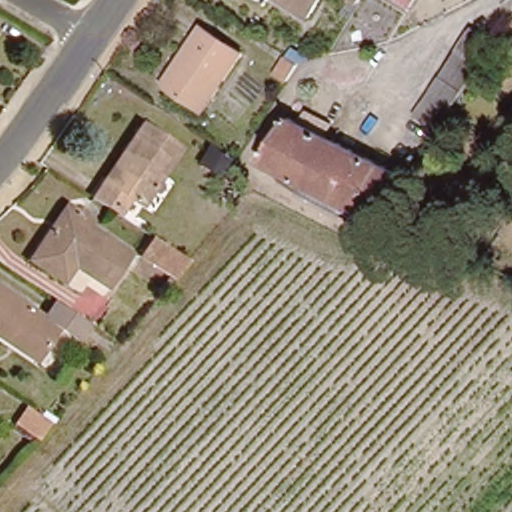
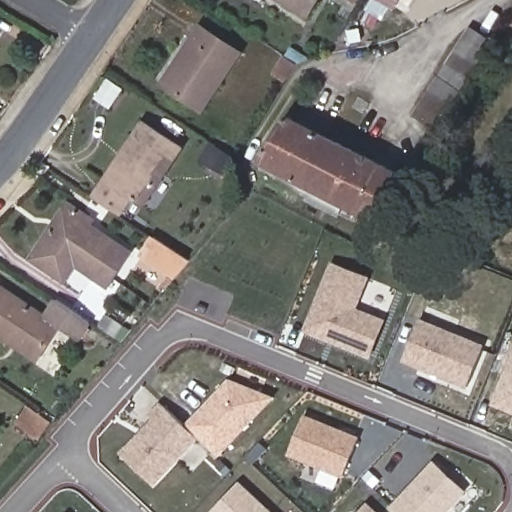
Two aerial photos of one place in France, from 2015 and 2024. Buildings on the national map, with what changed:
unchanged [(274,0),(313,0),(301,18),(274,0)]
unchanged [(512,12),(512,42),(499,33),(512,12)]
unchanged [(471,26),(492,39),(431,131),(409,116),(471,26)]
unchanged [(198,111),(161,84),(201,27),(237,54),(198,111)]
unchanged [(0,37),(0,35),(1,36),(0,37)]
unchanged [(262,55),(274,62),(263,80),(251,71),(262,55)]
unchanged [(139,199),(127,193),(116,212),(90,196),(101,179),(106,182),(121,152),(118,150),(138,118),(175,140),(139,199)]
unchanged [(270,162),(299,121),(411,182),(384,222),(270,162)]
unchanged [(50,272),(32,262),(51,227),(66,201),(72,205),(92,217),(89,222),(131,247),(110,283),(75,263),(66,281),(50,272)]
unchanged [(153,234),(190,258),(176,279),(140,256),(153,234)]
new [(363,277),(351,308),(379,320),(365,354),(301,328),(328,262),(363,277)]
new [(453,276),(447,291),(435,286),(440,271),(453,276)]
unchanged [(0,336),(0,287),(43,314),(53,297),(86,317),(75,335),(56,322),(39,351),(36,357),(8,341),(0,336)]
new [(481,345),(464,385),(400,360),(416,318),(481,345)]
new [(491,402),(512,349),(512,411),(491,402)]
new [(269,396),(214,455),(182,425),(225,378),(269,396)]
new [(194,436),(149,483),(117,453),(150,418),(146,415),(159,403),(194,436)]
unchanged [(31,435),(8,423),(19,405),(44,421),(31,435)]
new [(355,437),(340,475),(285,452),(300,415),(355,437)]
new [(461,490),(440,512),(397,512),(390,505),(430,462),(461,490)]
new [(267,512),(208,512),(236,482),(267,512)]
new [(374,512),(355,512),(364,502),(374,512)]

